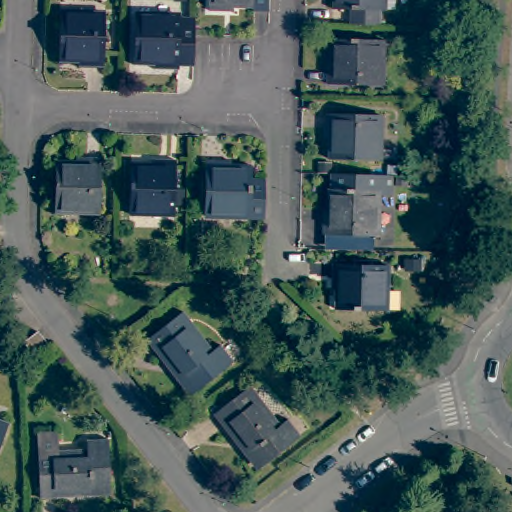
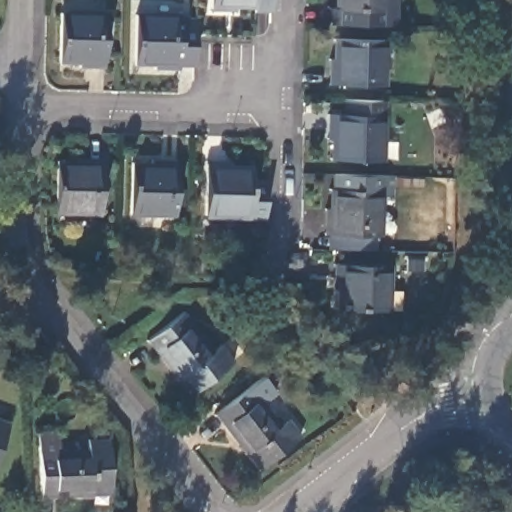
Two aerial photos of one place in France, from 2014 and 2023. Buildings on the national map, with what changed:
unchanged [(242,14),(242,11),(222,11),(222,14),(198,14),(198,0),(257,0),(257,15),(242,14)]
unchanged [(383,6),(381,6),(380,21),(357,21),(350,20),(350,6),(331,5),(331,0),(396,0),(396,8),(383,6)]
unchanged [(77,70),(77,66),(57,66),(57,13),(102,14),(101,71),(77,70)]
unchanged [(181,69),(166,68),(166,72),(141,71),(142,67),(122,66),(123,15),(167,16),(167,19),(182,21),(182,36),(181,69)]
unchanged [(326,85),(326,61),(331,61),(331,40),(382,41),(381,86),(326,85)]
unchanged [(327,160),(327,141),(325,141),(326,116),(380,118),(378,161),(327,160)]
unchanged [(54,217),(54,166),(76,166),(76,161),(99,162),(98,218),(54,217)]
unchanged [(129,218),(130,166),(151,166),(151,162),(175,163),(173,219),(129,218)]
unchanged [(197,219),(200,162),(225,163),(225,166),(245,168),(245,181),(258,182),(257,220),(197,219)]
unchanged [(322,249),(322,234),(321,234),(321,210),(325,210),(326,176),(386,177),(387,198),(372,198),(372,235),(367,235),(367,250),(322,249)]
unchanged [(332,308),(334,289),(329,289),(331,265),(387,268),(385,312),(332,308)]
unchanged [(174,382),(144,342),(181,313),(211,353),(217,348),(231,364),(193,393),(187,398),(174,382)]
unchanged [(34,358),(23,344),(37,333),(48,346),(34,358)]
unchanged [(241,457),(210,417),(248,387),(278,427),(286,422),(297,438),(258,468),(253,472),(241,457)]
unchanged [(0,447),(0,420),(9,424),(0,447)]
unchanged [(90,497),(40,499),(35,434),(56,433),(57,452),(86,451),(86,442),(107,441),(110,488),(110,496),(90,497)]

